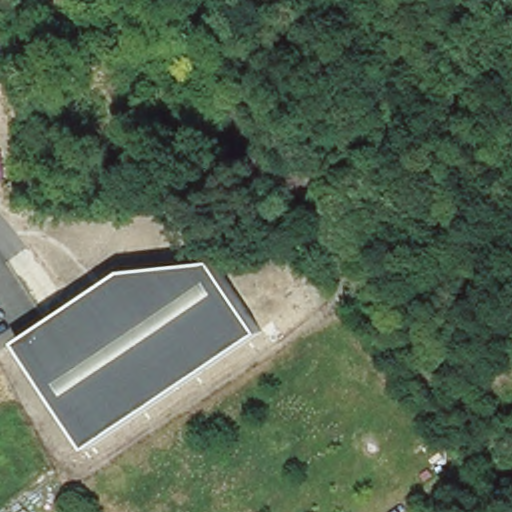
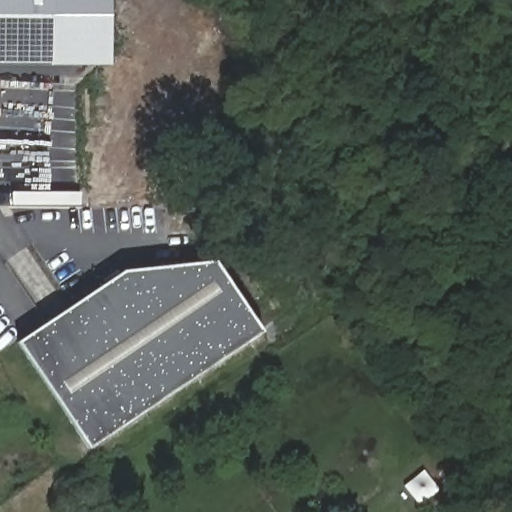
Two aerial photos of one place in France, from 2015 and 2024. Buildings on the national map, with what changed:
new [(112,66),(0,65),(0,0),(112,0),(112,66)]
unchanged [(88,447),(18,343),(123,271),(219,261),(263,332),(88,447)]

